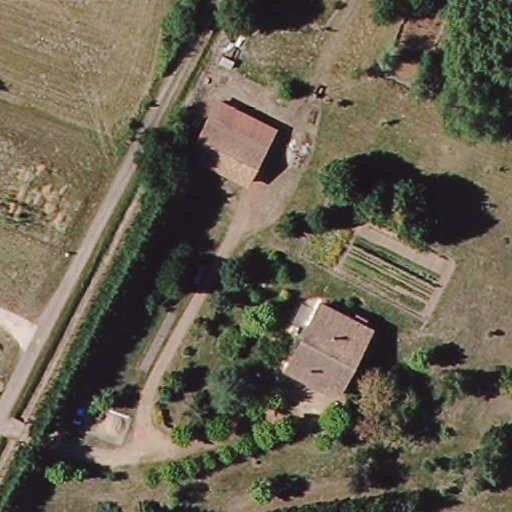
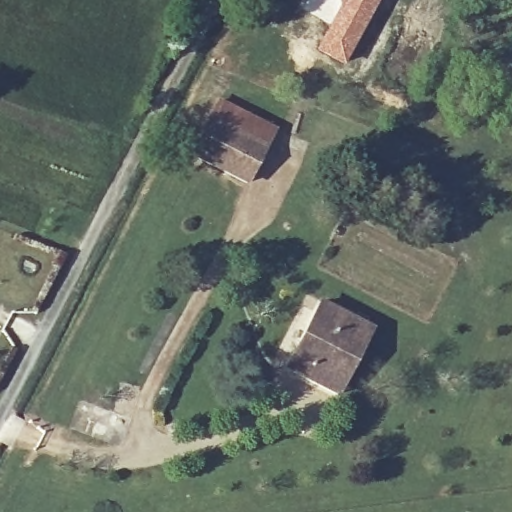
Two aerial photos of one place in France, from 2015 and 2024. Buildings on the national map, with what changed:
new [(332,0),(379,0),(343,67),(313,50),(338,4),(332,0)]
unchanged [(265,135),(255,155),(200,126),(211,108),(265,135)]
unchanged [(255,155),(237,189),(182,160),(200,126),(255,155)]
unchanged [(337,398),(288,371),(321,306),(370,331),(337,398)]

